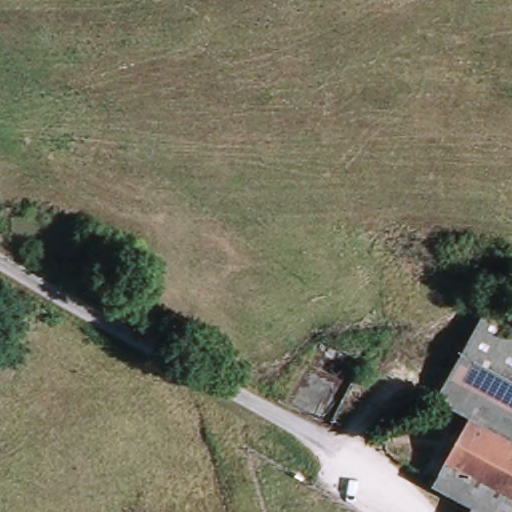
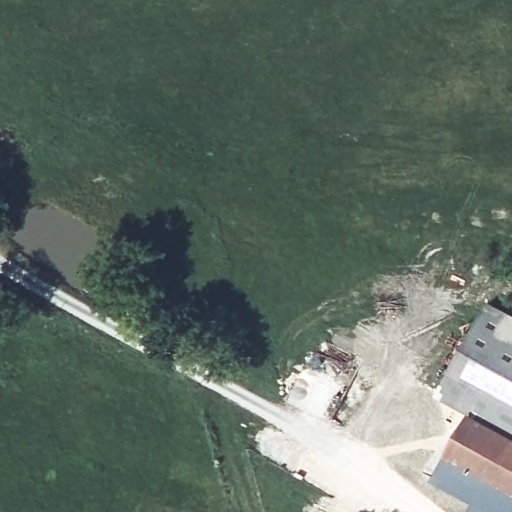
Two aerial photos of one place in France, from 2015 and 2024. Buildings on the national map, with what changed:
unchanged [(459,417),(434,400),(481,308),(512,326),(512,444),(466,420),(459,417)]
unchanged [(466,420),(512,444),(512,512),(472,512),(474,507),(435,485),(466,420)]

